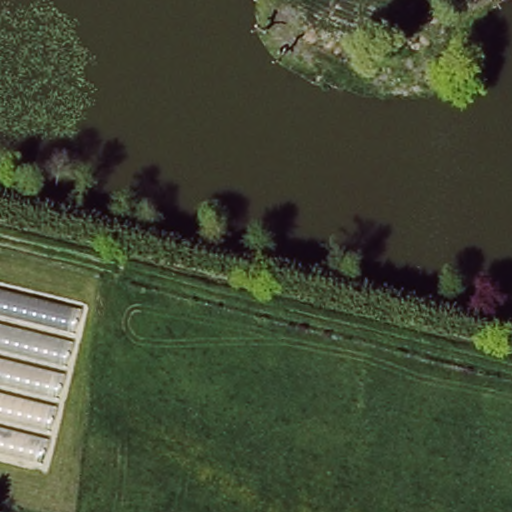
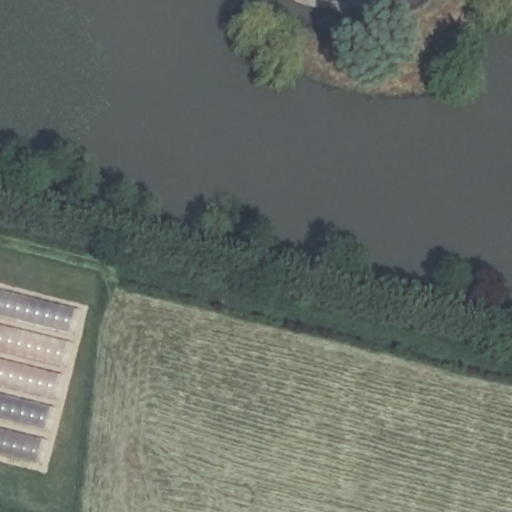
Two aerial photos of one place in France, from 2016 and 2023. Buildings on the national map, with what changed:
unchanged [(0,452),(0,291),(75,310),(37,462),(0,452)]

